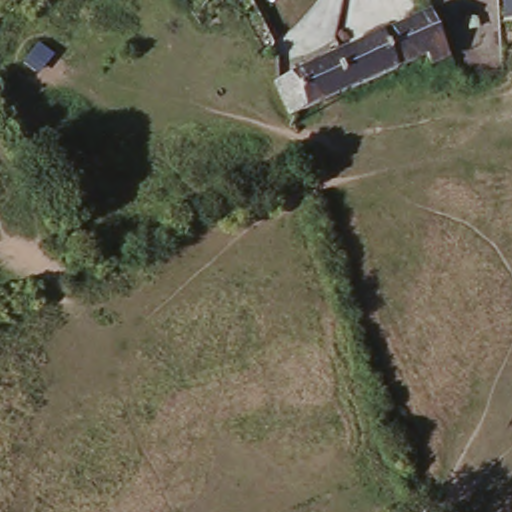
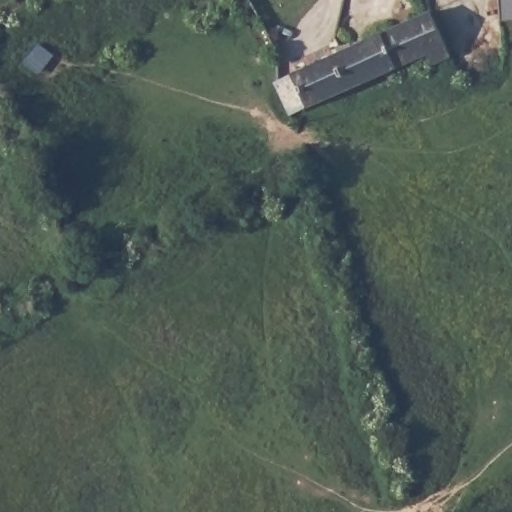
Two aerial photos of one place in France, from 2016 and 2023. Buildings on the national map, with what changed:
unchanged [(510,25),(508,0),(512,0),(512,25),(510,25)]
unchanged [(290,124),(271,85),(277,82),(430,13),(453,60),(435,69),(427,56),(295,121),(290,124)]

